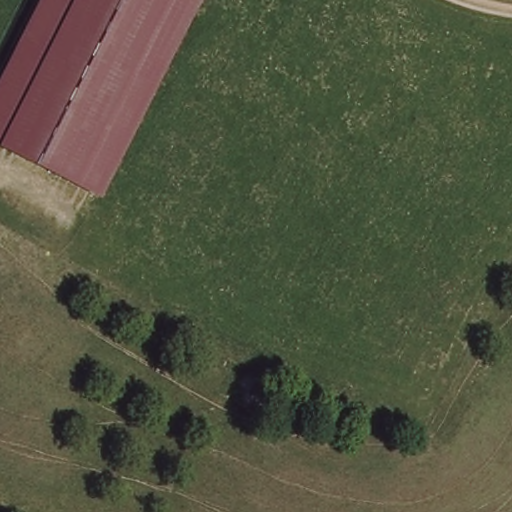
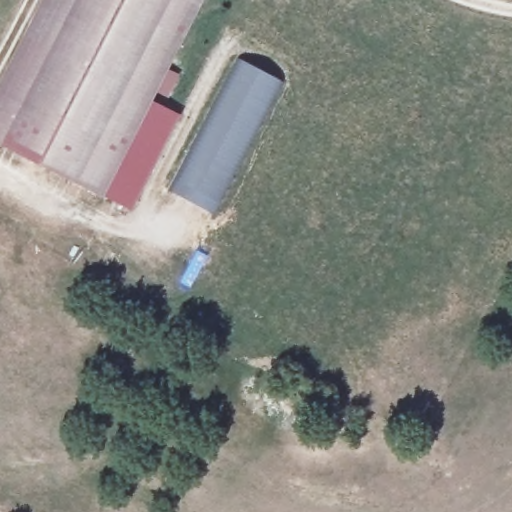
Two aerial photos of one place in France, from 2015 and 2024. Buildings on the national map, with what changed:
unchanged [(0,144),(0,92),(18,56),(46,0),(198,0),(100,195),(0,144)]
new [(285,82),(212,215),(165,191),(237,60),(285,82)]

